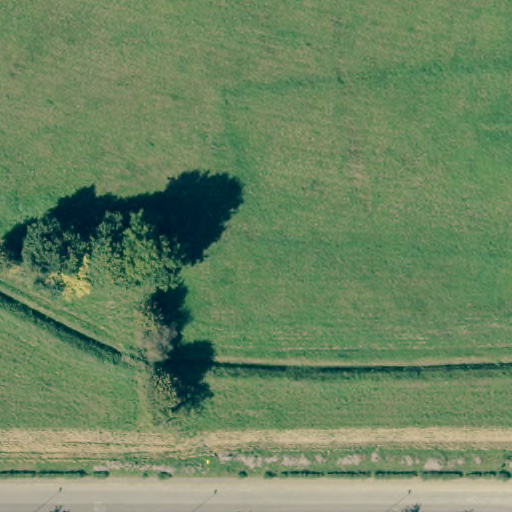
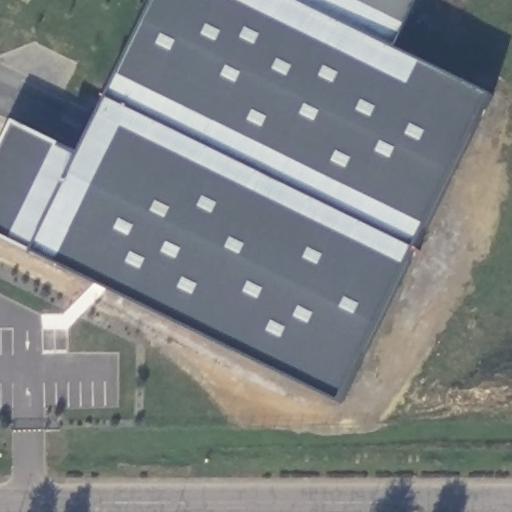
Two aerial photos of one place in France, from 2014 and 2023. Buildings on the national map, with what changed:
new [(33,254),(0,238),(0,147),(13,120),(81,153),(156,0),(299,0),(402,52),(492,96),(340,403),(33,254)]
unchanged [(299,0),(428,0),(402,52),(299,0)]

